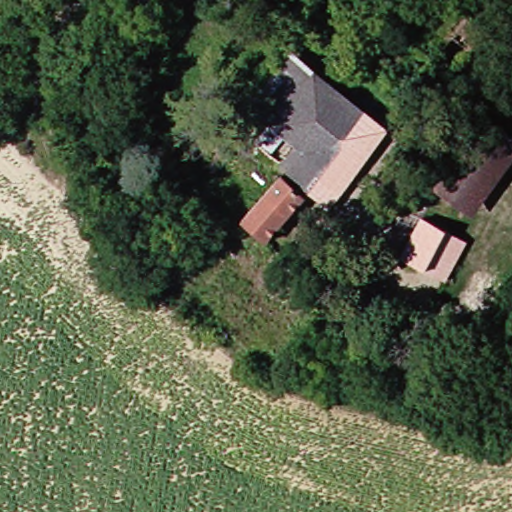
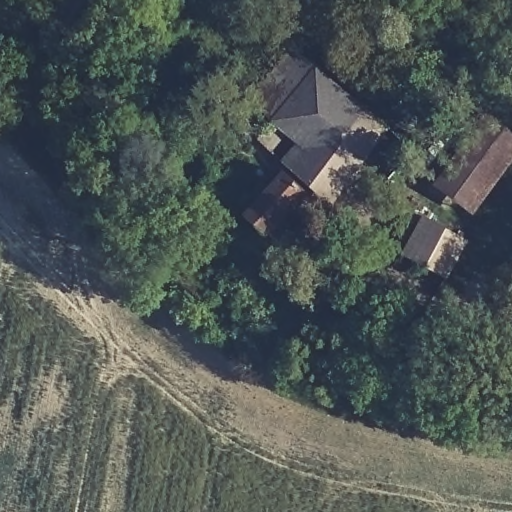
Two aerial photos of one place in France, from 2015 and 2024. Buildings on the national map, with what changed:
unchanged [(486,33),(445,80),(412,52),(451,5),(486,33)]
unchanged [(308,189),(281,165),(298,144),(288,135),(270,157),(255,142),(314,66),(366,114),(308,189)]
unchanged [(390,134),(331,209),(308,189),(366,114),(390,134)]
unchanged [(512,142),(512,150),(479,214),(443,193),(480,125),(512,142)]
unchanged [(310,198),(270,240),(247,220),(286,178),(310,198)]
unchanged [(446,276),(405,258),(425,217),(466,238),(446,276)]

